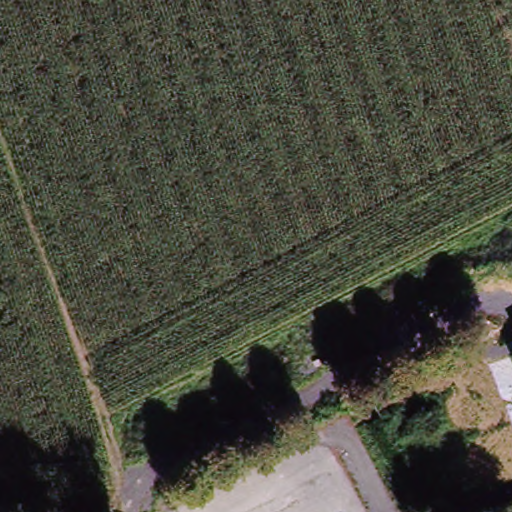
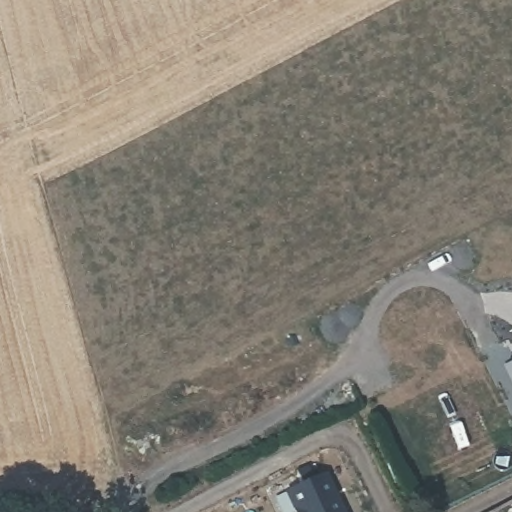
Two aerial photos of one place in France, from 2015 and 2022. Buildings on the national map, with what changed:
new [(296,512),(294,512),(285,493),(324,476),(341,512),(297,512),(296,512)]

